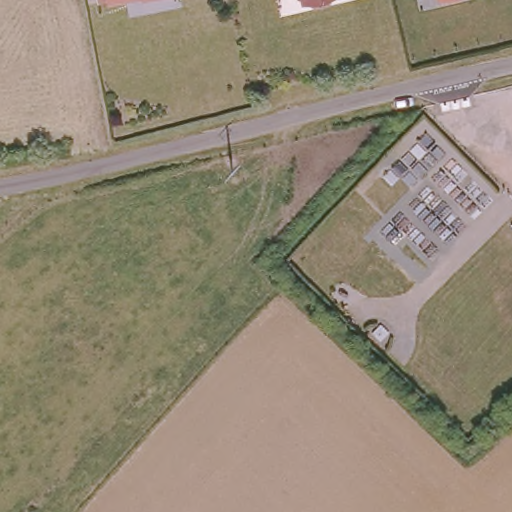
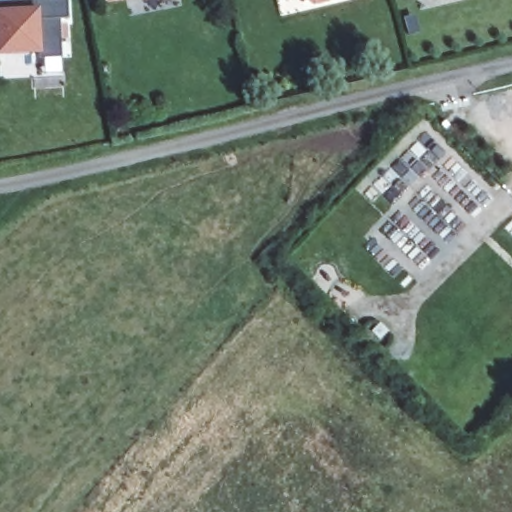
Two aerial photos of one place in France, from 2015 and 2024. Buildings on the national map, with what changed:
new [(62,17),(63,48),(0,51),(0,0),(17,0),(17,3),(36,1),(36,0),(70,0),(70,16),(62,17)]
unchanged [(112,0),(117,0),(112,1),(112,0)]
unchanged [(310,1),(305,2),(304,0),(329,0),(315,4),(310,1)]
unchanged [(439,0),(453,0),(440,3),(439,0)]

